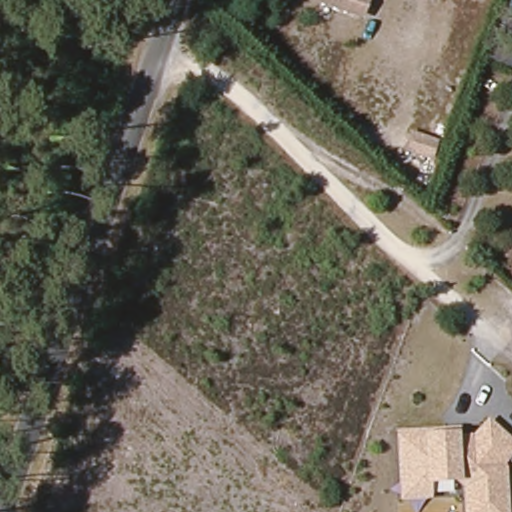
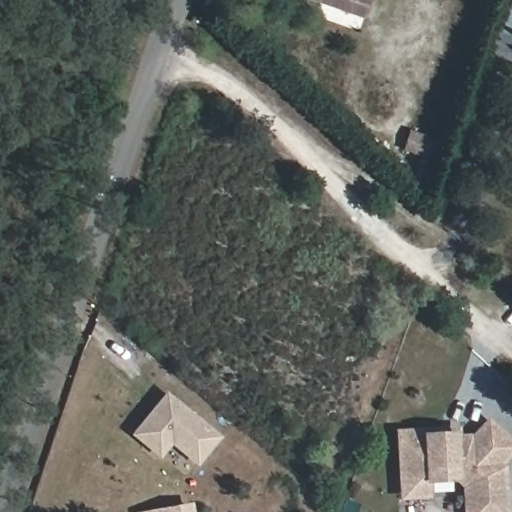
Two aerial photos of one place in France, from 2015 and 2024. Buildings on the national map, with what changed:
unchanged [(361,18),(351,15),(312,0),(367,0),(361,18)]
new [(512,38),(512,59),(510,66),(487,58),(496,32),(512,38)]
new [(160,457),(132,433),(167,391),(221,436),(197,466),(172,445),(160,457)]
unchanged [(460,433),(473,432),(488,418),(512,440),(512,457),(506,463),(509,512),(464,512),(463,487),(454,481),(429,482),(430,499),(398,501),(395,429),(459,427),(460,433)]

